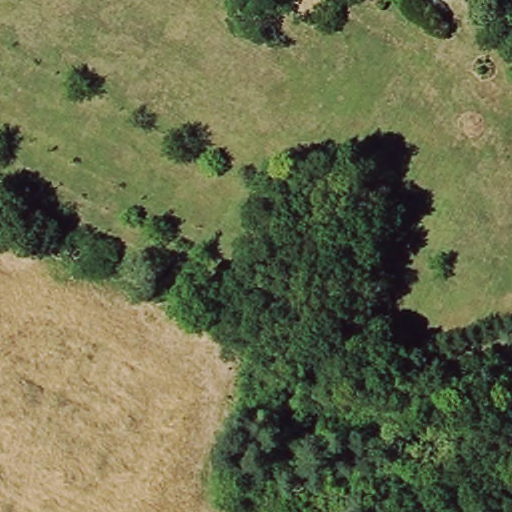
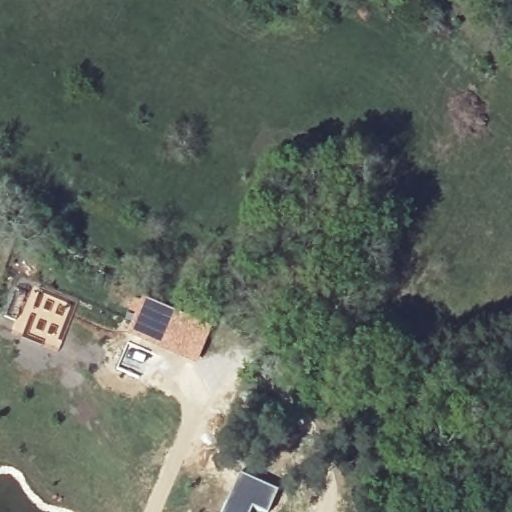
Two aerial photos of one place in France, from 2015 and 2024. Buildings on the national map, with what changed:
new [(142,307),(208,333),(195,362),(130,336),(142,307)]
new [(278,491),(269,512),(258,512),(252,510),(251,512),(223,512),(239,475),(278,491)]

